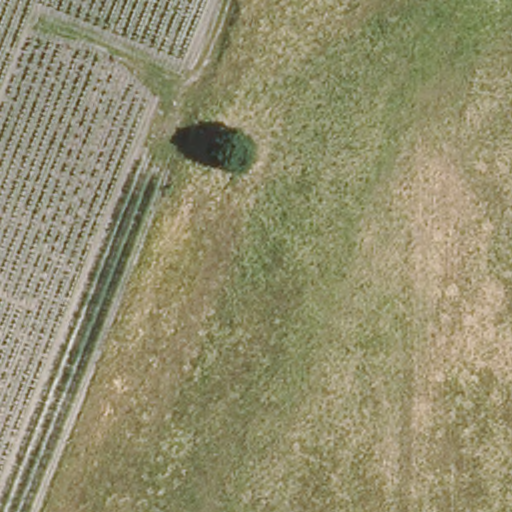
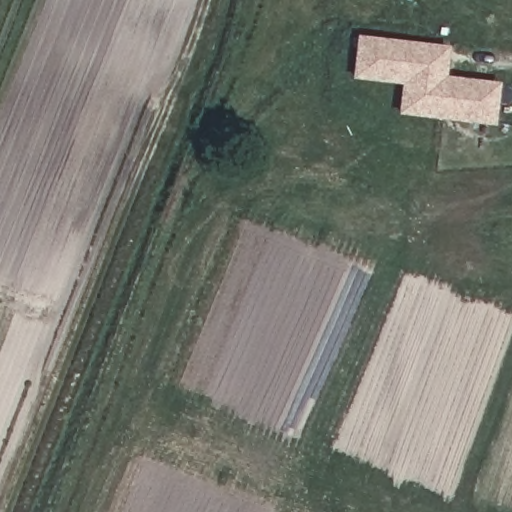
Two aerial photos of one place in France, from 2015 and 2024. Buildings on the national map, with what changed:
new [(352,37),(439,46),(436,76),(491,82),(487,120),(394,110),(397,80),(348,75),(352,37)]

